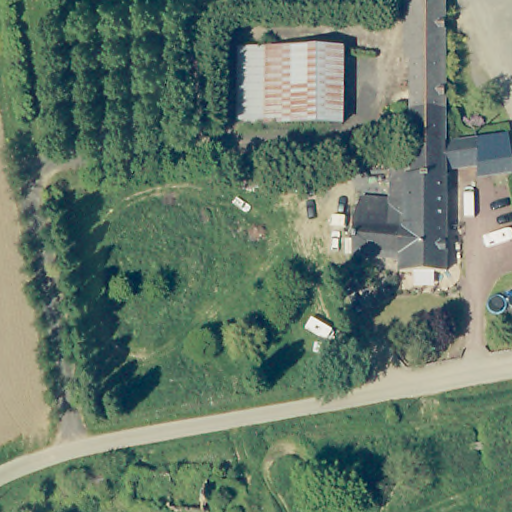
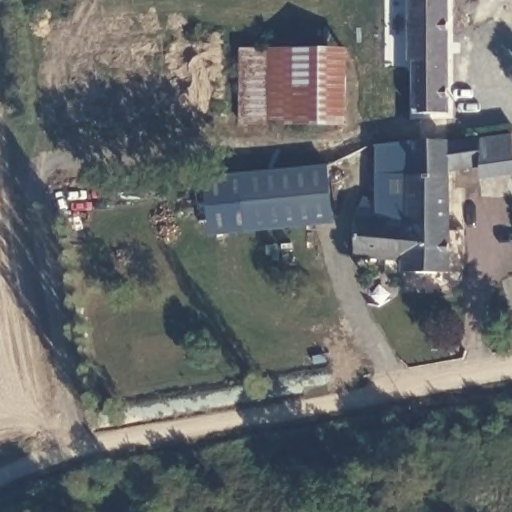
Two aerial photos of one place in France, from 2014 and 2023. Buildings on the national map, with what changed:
unchanged [(446,70),(447,142),(413,145),(413,62),(408,62),(408,0),(446,0),(446,34),(461,34),(462,70),(446,70)]
unchanged [(344,49),(343,125),(240,125),(240,50),(271,50),(344,49)]
unchanged [(510,135),(512,149),(512,175),(479,180),(479,167),(478,139),(510,135)]
unchanged [(353,220),(362,198),(392,201),(393,164),(413,165),(413,145),(447,142),(478,139),(479,167),(447,171),(447,273),(401,274),(401,261),(401,222),(353,220)]
new [(333,224),(244,234),(238,173),(326,166),(333,224)]
demolished [(267,176),(267,188),(239,190),(239,177),(267,176)]
unchanged [(353,258),(353,220),(401,222),(401,261),(353,258)]
unchanged [(105,472),(106,490),(83,491),(82,474),(105,472)]

